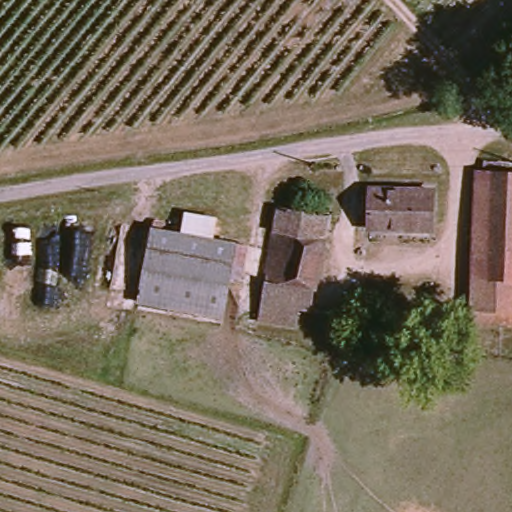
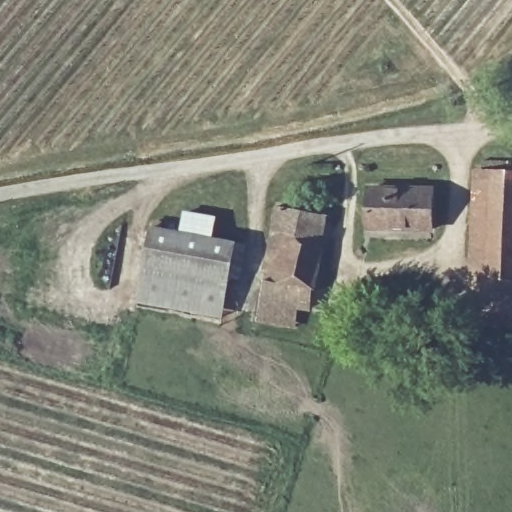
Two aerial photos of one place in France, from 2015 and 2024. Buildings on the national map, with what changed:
unchanged [(472,228),(474,170),(489,171),(512,171),(512,258),(471,258),(472,228)]
unchanged [(369,229),(372,185),(433,190),(431,232),(369,229)]
unchanged [(317,212),(328,224),(324,245),(271,237),(276,209),(317,212)]
unchanged [(192,280),(141,272),(149,232),(202,242),(192,280)]
unchanged [(271,237),(324,245),(313,296),(310,313),(259,307),(263,289),(271,237)]
unchanged [(231,247),(224,286),(192,280),(202,242),(231,247)]
unchanged [(471,258),(512,258),(512,280),(470,279),(471,258)]
unchanged [(224,286),(218,320),(184,314),(135,306),(141,272),(192,280),(224,286)]
unchanged [(494,314),(469,313),(470,279),(512,280),(512,309),(494,309),(494,314)]

